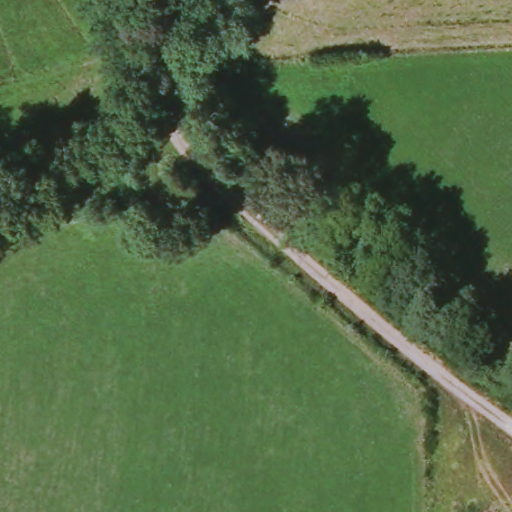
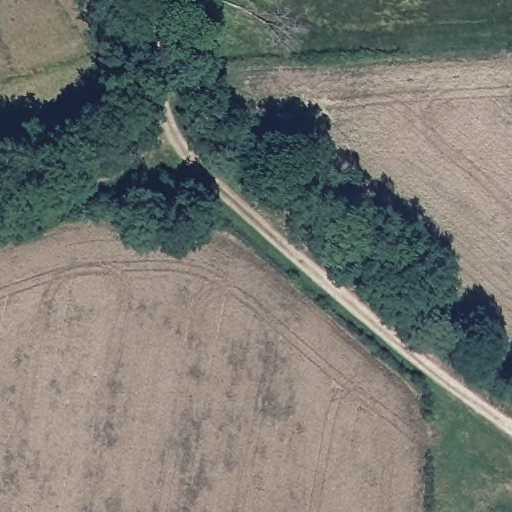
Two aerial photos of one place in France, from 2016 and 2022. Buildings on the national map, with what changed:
[]

